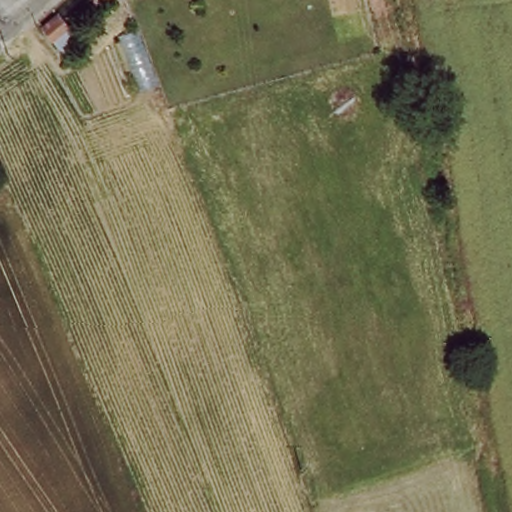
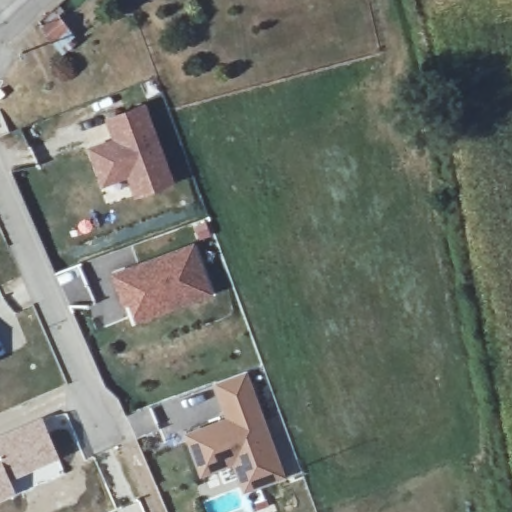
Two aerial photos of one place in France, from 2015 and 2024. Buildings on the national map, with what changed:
new [(113,140),(105,120),(145,103),(175,184),(136,199),(128,179),(103,189),(88,149),(113,140)]
new [(193,245),(213,296),(134,324),(127,307),(122,309),(110,276),(193,245)]
new [(224,419),(213,385),(247,374),(287,479),(241,496),(231,465),(199,477),(184,434),(224,419)]
new [(60,459),(11,480),(16,495),(0,502),(0,435),(42,417),(60,459)]

